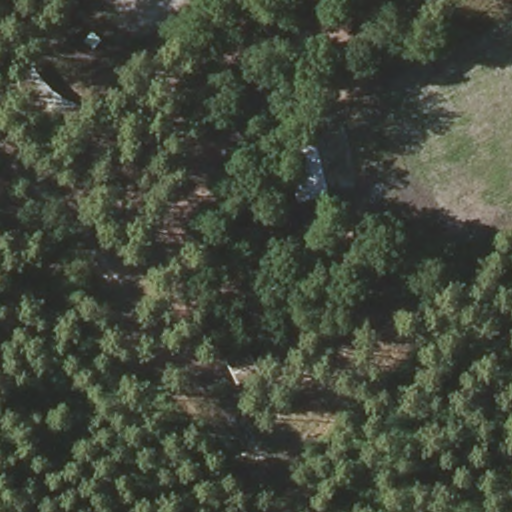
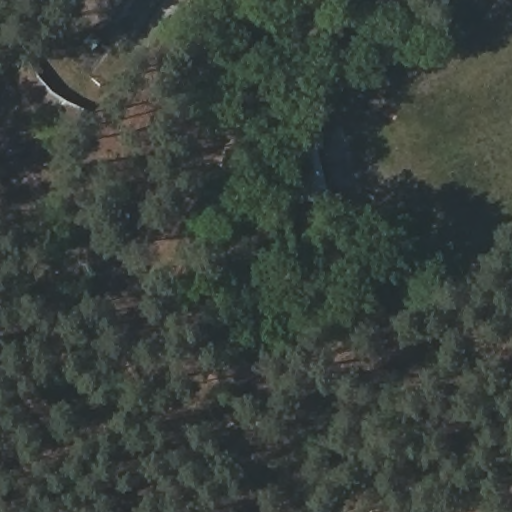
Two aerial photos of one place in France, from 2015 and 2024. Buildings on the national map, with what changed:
unchanged [(278,132),(314,122),(332,193),(297,201),(278,132)]

